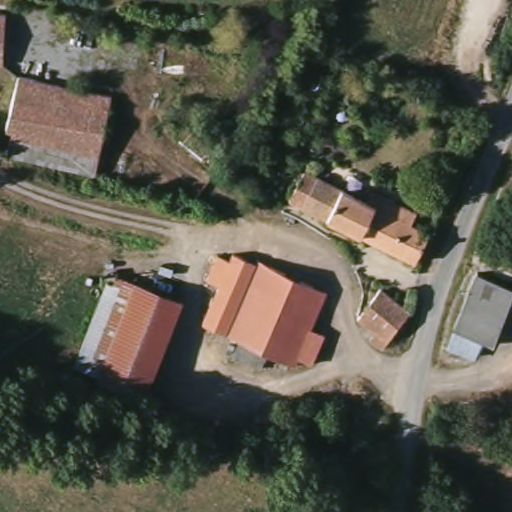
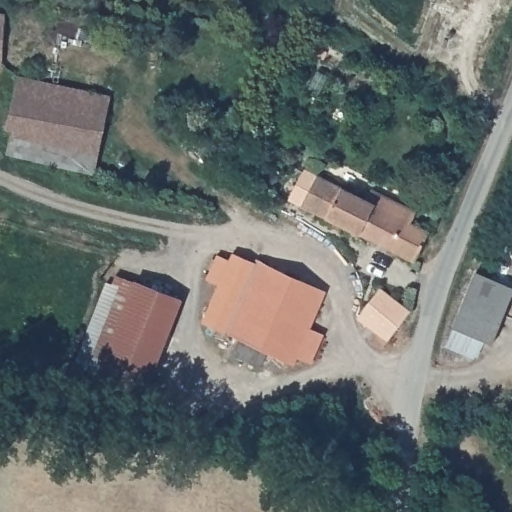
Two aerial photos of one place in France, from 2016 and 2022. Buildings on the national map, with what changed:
unchanged [(1,64),(0,64),(0,14),(5,15),(1,64)]
unchanged [(14,136),(9,132),(21,76),(114,95),(99,173),(92,171),(89,168),(11,151),(14,136)]
unchanged [(306,164),(365,194),(370,185),(420,208),(414,220),(425,224),(433,228),(422,248),(416,257),(291,198),(306,164)]
unchanged [(214,325),(230,286),(221,281),(230,257),(245,263),(250,253),(271,263),(244,338),(214,325)]
unchanged [(340,294),(323,338),(337,344),(327,364),(315,360),(310,365),(244,338),(271,263),(340,294)]
unchanged [(120,268),(137,277),(104,372),(101,371),(78,362),(110,276),(116,279),(120,268)]
unchanged [(477,272),(512,288),(512,296),(485,357),(451,341),(477,272)]
unchanged [(186,296),(149,393),(104,372),(137,277),(186,296)]
unchanged [(371,339),(377,329),(360,318),(376,288),(408,307),(411,309),(383,351),(381,350),(380,351),(371,339)]

